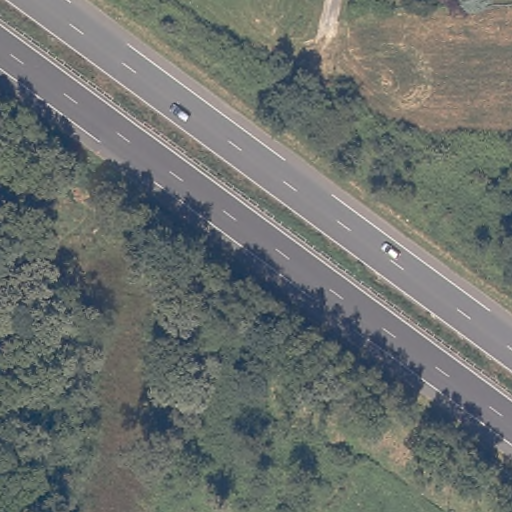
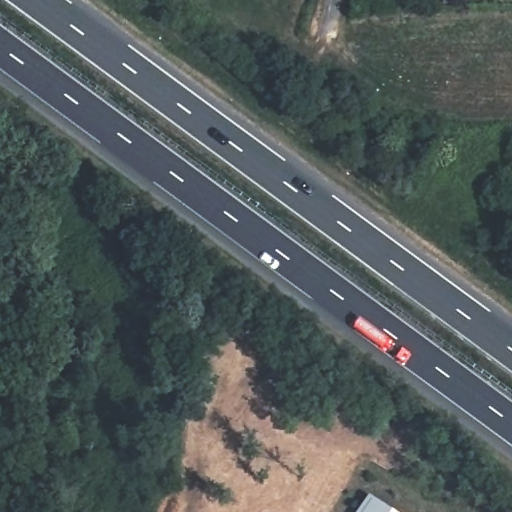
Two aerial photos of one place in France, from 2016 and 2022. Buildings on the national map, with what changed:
new [(392,512),(359,512),(371,497),(392,512)]

